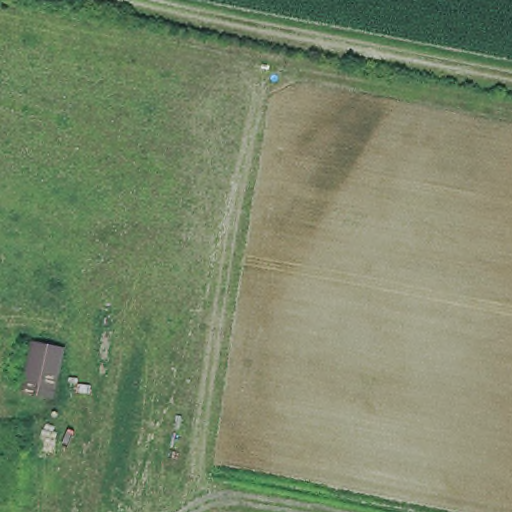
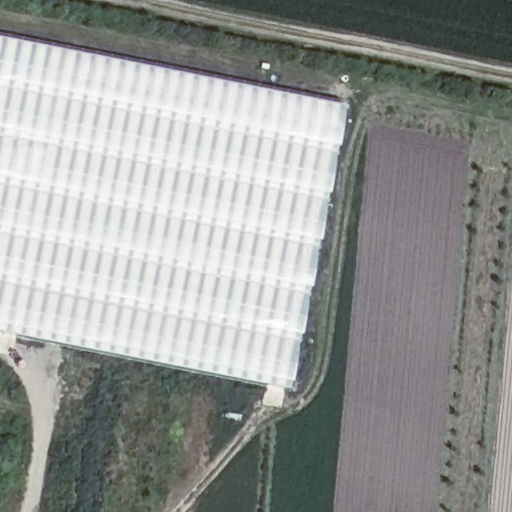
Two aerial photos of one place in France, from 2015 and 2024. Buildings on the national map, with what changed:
new [(286,392),(0,334),(0,33),(340,101),(286,392)]

